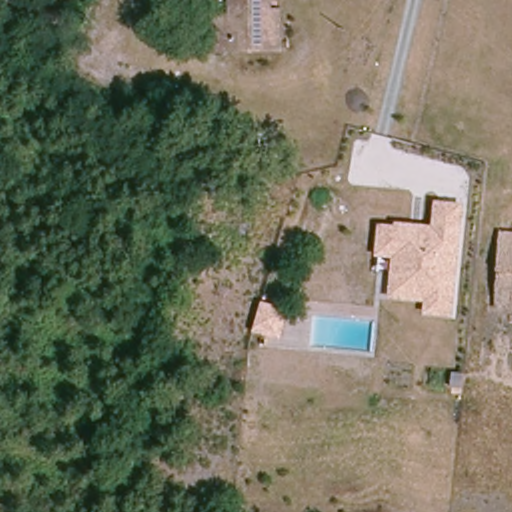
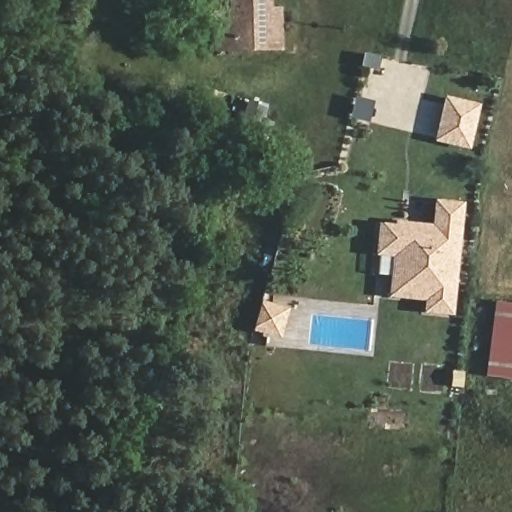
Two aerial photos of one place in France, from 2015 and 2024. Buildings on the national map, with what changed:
unchanged [(273,51),(221,53),(220,21),(234,21),(234,0),(273,0),(273,14),(285,14),(285,50),(273,51)]
new [(475,106),(466,145),(437,140),(445,100),(475,106)]
unchanged [(379,224),(393,225),(393,222),(431,225),(432,201),(463,204),(452,317),(422,314),(422,303),(387,298),(389,269),(377,268),(380,255),(376,256),(379,224)]
demolished [(508,230),(512,231),(512,306),(506,305),(508,230)]
unchanged [(283,341),(252,335),(261,299),(289,306),(283,341)]
new [(512,379),(486,375),(496,302),(512,304),(512,379)]

